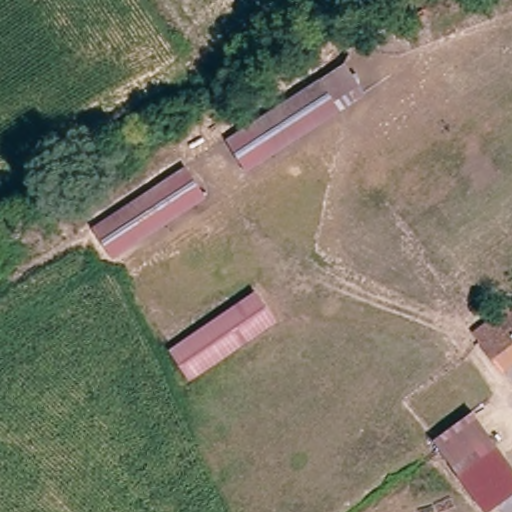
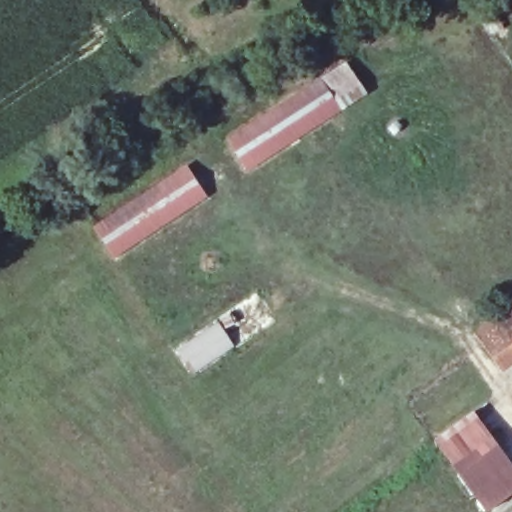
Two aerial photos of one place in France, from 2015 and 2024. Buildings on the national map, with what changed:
unchanged [(252,174),(228,143),(317,76),(341,107),(252,174)]
unchanged [(98,230),(184,163),(208,195),(122,261),(98,230)]
demolished [(252,287),(278,317),(196,386),(170,357),(252,287)]
unchanged [(495,324),(508,314),(512,311),(512,358),(495,338),(489,329),(495,324)]
new [(217,322),(233,346),(191,374),(175,350),(217,322)]
unchanged [(512,457),(512,484),(489,502),(435,435),(434,433),(469,404),(472,408),(493,433),(512,457)]

